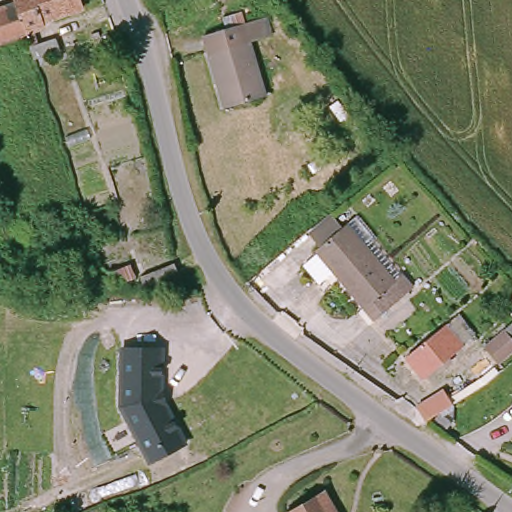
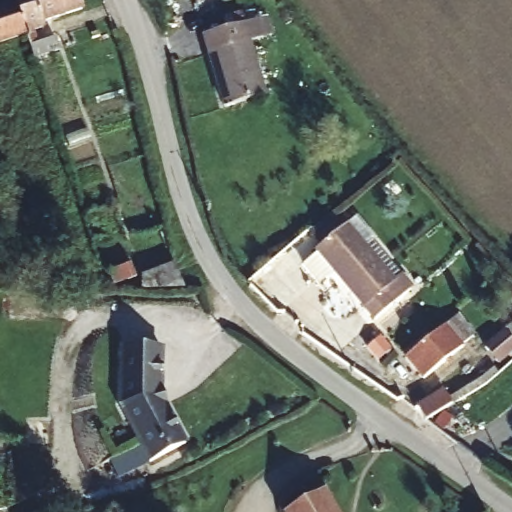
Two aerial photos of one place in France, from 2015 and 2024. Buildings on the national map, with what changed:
unchanged [(33,1),(33,0),(95,0),(97,5),(52,20),(61,47),(83,39),(86,50),(53,62),(51,57),(48,46),(43,30),(33,1)]
unchanged [(0,43),(0,12),(33,1),(43,30),(0,43)]
unchanged [(206,43),(265,16),(273,35),(255,43),(276,90),(235,108),(206,43)]
unchanged [(396,276),(401,271),(417,286),(380,320),(335,275),(325,283),(319,277),(328,269),(313,253),(347,223),(396,276)]
unchanged [(125,286),(107,293),(105,286),(103,281),(121,274),(122,276),(125,286)]
unchanged [(137,288),(171,277),(177,299),(141,300),(137,288)]
unchanged [(458,317),(477,338),(430,381),(410,359),(447,327),(458,317)]
unchanged [(474,350),(493,333),(508,320),(512,324),(512,338),(500,349),(491,368),(486,363),(474,350)]
unchanged [(163,348),(164,398),(188,443),(147,465),(117,407),(120,347),(163,348)]
unchanged [(336,512),(297,512),(323,494),(336,512)]

